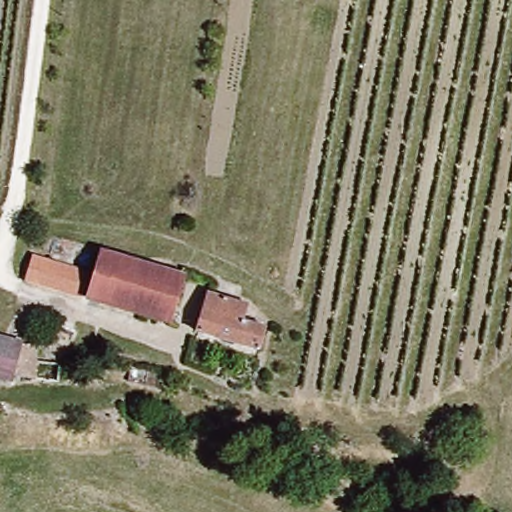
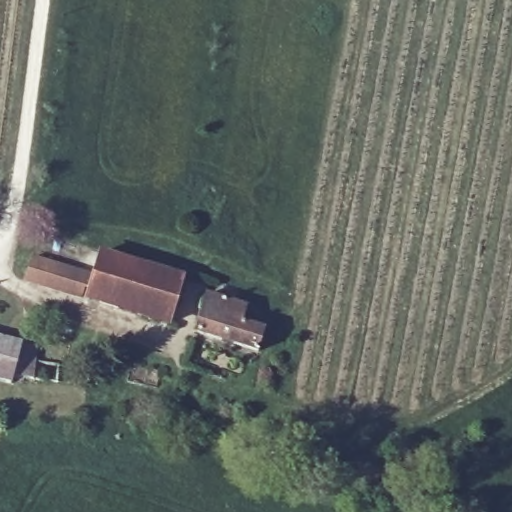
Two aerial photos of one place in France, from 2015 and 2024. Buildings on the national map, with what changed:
unchanged [(143,263),(128,314),(86,300),(103,251),(143,263)]
unchanged [(80,297),(56,292),(23,280),(31,257),(63,266),(89,274),(80,297)]
unchanged [(182,277),(167,326),(128,314),(143,263),(182,277)]
unchanged [(241,316),(262,323),(255,352),(193,331),(204,292),(245,305),(241,316)]
unchanged [(32,347),(33,353),(62,359),(59,378),(0,369),(0,342),(32,347)]

